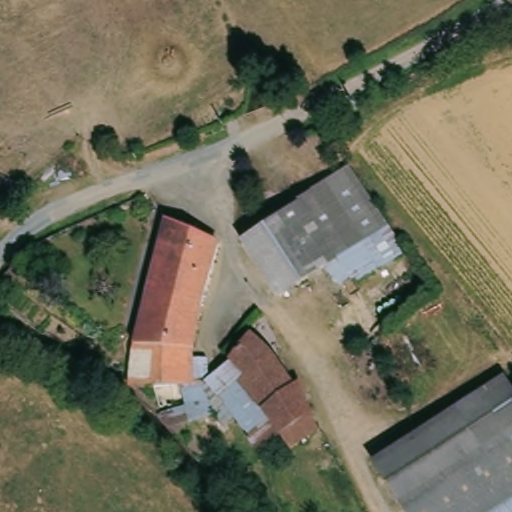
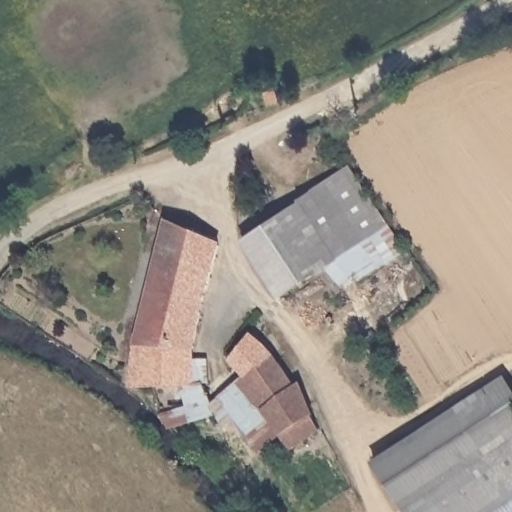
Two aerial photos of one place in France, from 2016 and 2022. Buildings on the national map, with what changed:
unchanged [(412,247),(360,281),(343,256),(286,294),(249,238),(356,163),(412,247)]
unchanged [(22,189),(15,211),(0,206),(0,182),(22,189)]
unchanged [(220,239),(201,307),(193,357),(209,357),(210,377),(206,382),(219,412),(194,418),(188,401),(160,406),(156,383),(132,383),(134,351),(169,222),(220,239)]
unchanged [(243,377),(248,372),(232,354),(252,333),(264,339),(302,377),(296,382),(315,417),(319,425),(320,427),(293,444),(284,432),(243,377)]
unchanged [(263,446),(241,415),(225,424),(219,412),(206,382),(210,377),(232,354),(248,372),(243,377),(284,432),(263,446)]
unchanged [(512,379),(512,435),(483,390),(496,381),(508,372),(512,379)]
unchanged [(512,496),(486,512),(411,512),(377,460),(483,390),(512,435),(512,496)]
unchanged [(512,512),(486,512),(512,496),(512,512)]

